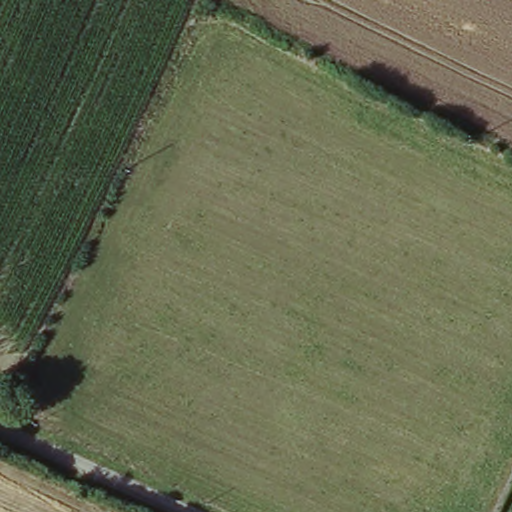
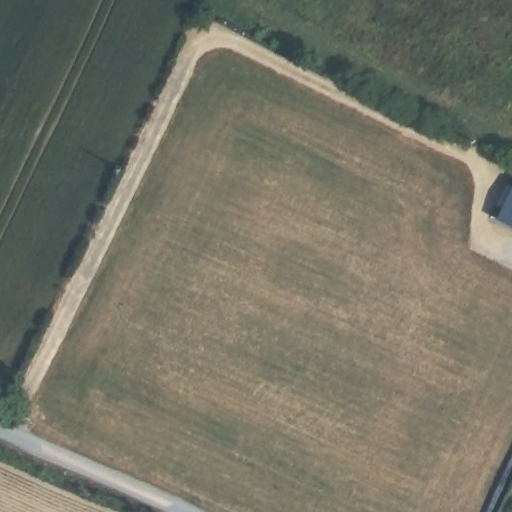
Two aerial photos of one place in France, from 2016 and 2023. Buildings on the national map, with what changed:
new [(499,220),(512,194),(512,227),(499,220)]

